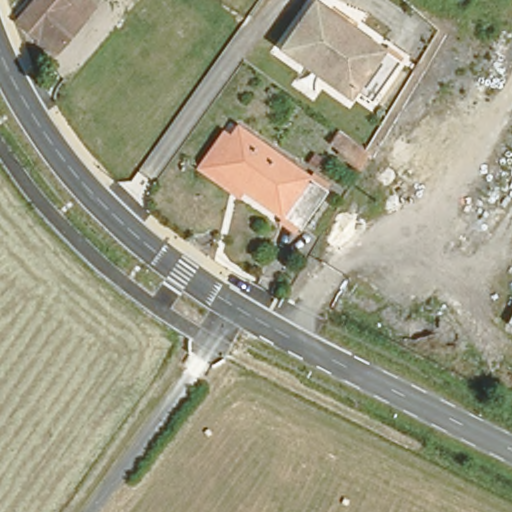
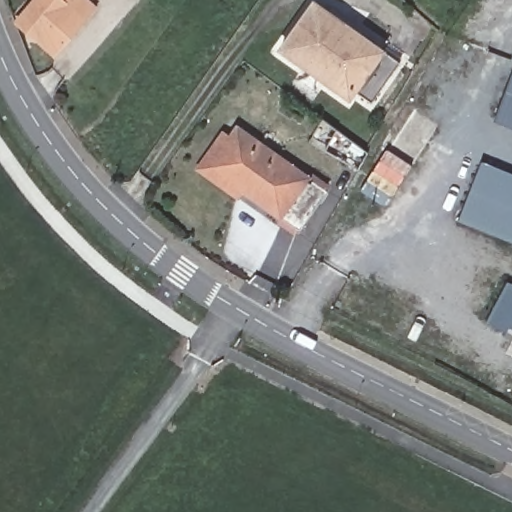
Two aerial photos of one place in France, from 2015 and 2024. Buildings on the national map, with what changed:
unchanged [(63,43),(37,20),(25,10),(34,0),(88,0),(95,6),(63,43)]
unchanged [(399,61),(371,102),(354,89),(348,96),(281,47),(314,0),(315,0),(399,61)]
new [(512,85),(512,124),(498,118),(512,85)]
unchanged [(326,191),(300,228),(241,188),(237,194),(198,166),(207,153),(226,128),(232,132),(236,126),(326,191)]
demolished [(355,166),(345,158),(324,142),(332,130),(354,145),(364,153),(355,166)]
new [(512,173),(512,242),(457,220),(481,160),(512,173)]
unchanged [(512,310),(512,326),(505,322),(512,310)]

